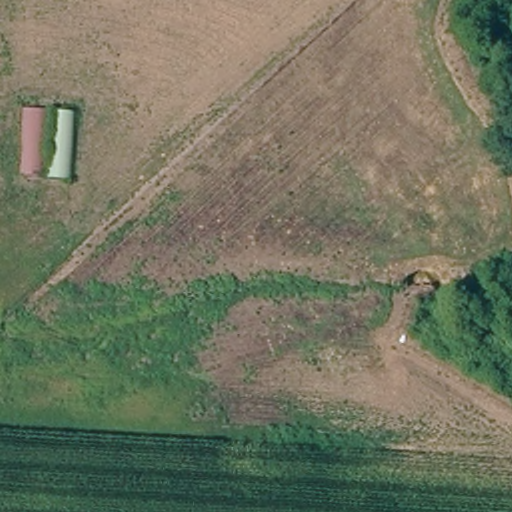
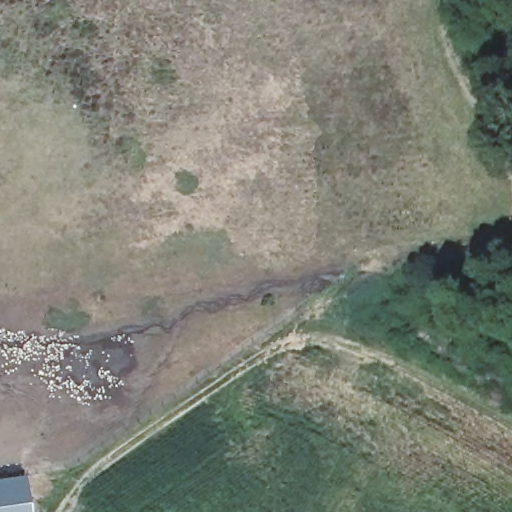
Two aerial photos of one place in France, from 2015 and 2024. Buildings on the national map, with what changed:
demolished [(22,112),(75,114),(72,182),(61,183),(58,219),(14,218),(22,112)]
new [(30,512),(0,512),(0,476),(25,472),(30,512)]

